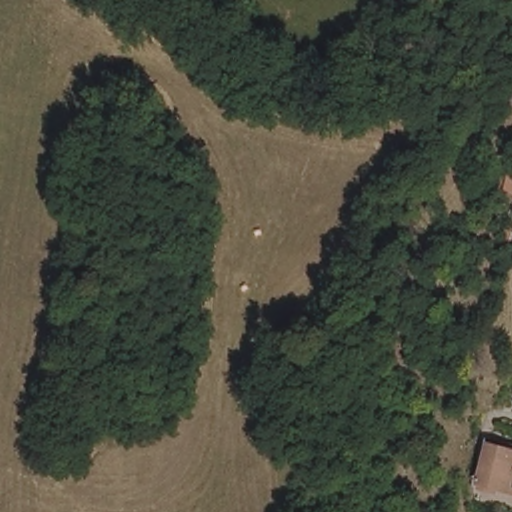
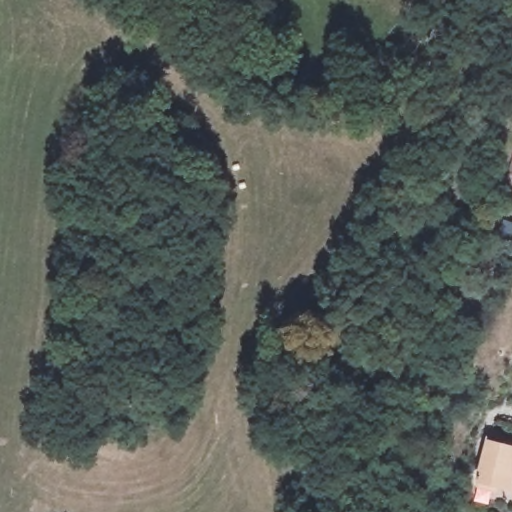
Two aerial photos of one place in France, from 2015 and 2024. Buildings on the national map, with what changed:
unchanged [(479,489),(489,450),(512,457),(512,497),(479,489)]

